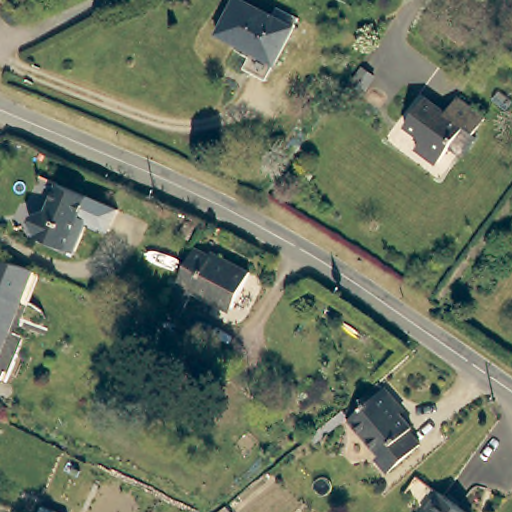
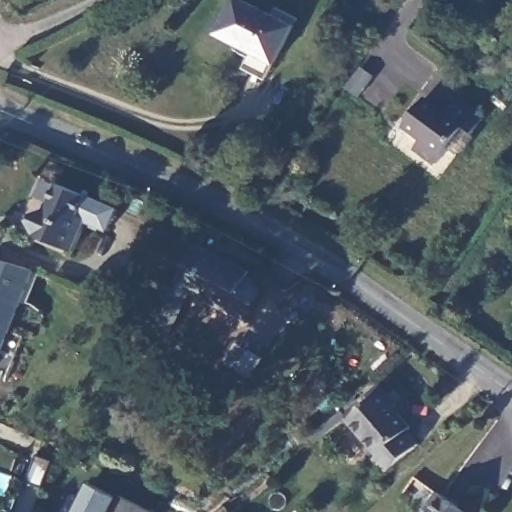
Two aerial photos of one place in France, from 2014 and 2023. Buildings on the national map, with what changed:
unchanged [(236,2),(272,20),(277,11),(298,22),(275,68),(217,38),(236,2)]
unchanged [(435,4),(471,31),(462,44),(425,16),(435,4)]
unchanged [(427,107),(446,120),(456,106),(485,125),(474,141),(464,135),(438,172),(417,157),(423,148),(407,136),(427,107)]
unchanged [(83,198),(113,211),(104,231),(82,222),(70,253),(32,237),(32,234),(30,233),(27,227),(33,215),(39,212),(41,213),(53,185),(83,198)]
unchanged [(230,299),(212,291),(210,294),(189,285),(177,309),(162,302),(192,241),(207,248),(209,244),(217,249),(248,264),(230,299)]
unchanged [(21,300),(22,301),(0,355),(0,261),(32,272),(21,300)]
unchanged [(406,440),(418,454),(387,482),(373,468),(380,462),(344,422),(377,393),(396,414),(402,421),(398,424),(410,437),(406,440)]
new [(88,483),(120,497),(153,512),(74,512),(88,483)]
unchanged [(460,512),(428,512),(439,498),(460,512)]
unchanged [(229,505),(234,512),(219,512),(229,505)]

